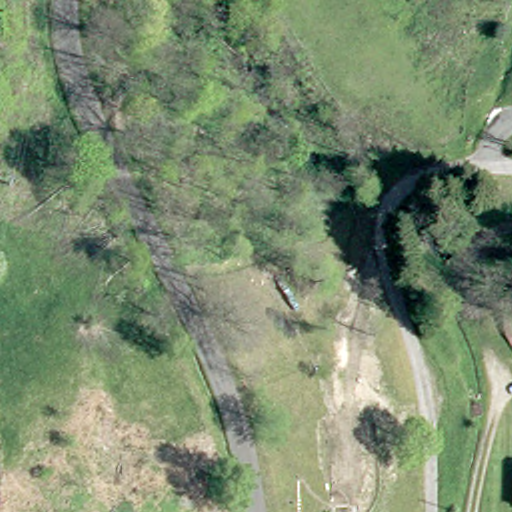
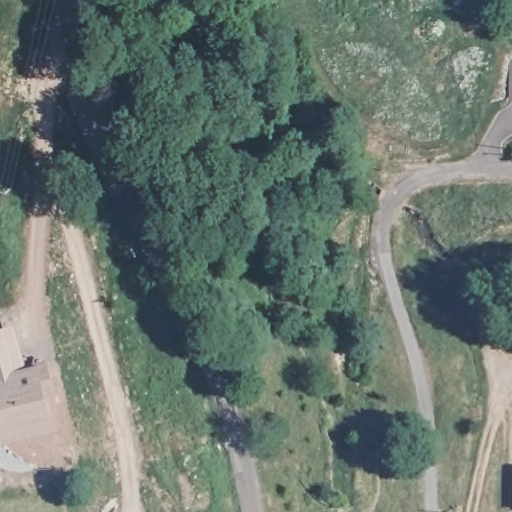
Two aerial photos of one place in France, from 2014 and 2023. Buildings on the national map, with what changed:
new [(59,431),(0,446),(0,328),(15,323),(26,364),(40,361),(59,431)]

